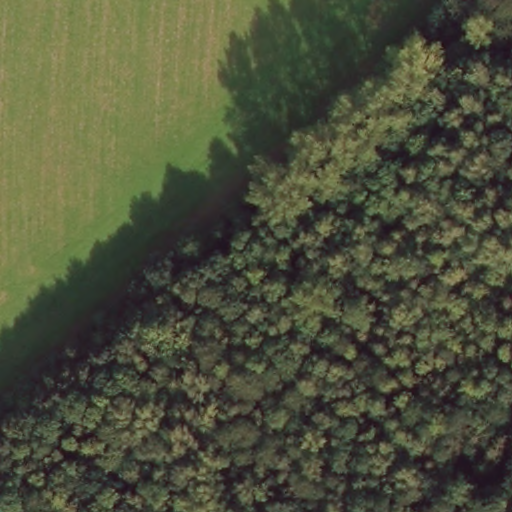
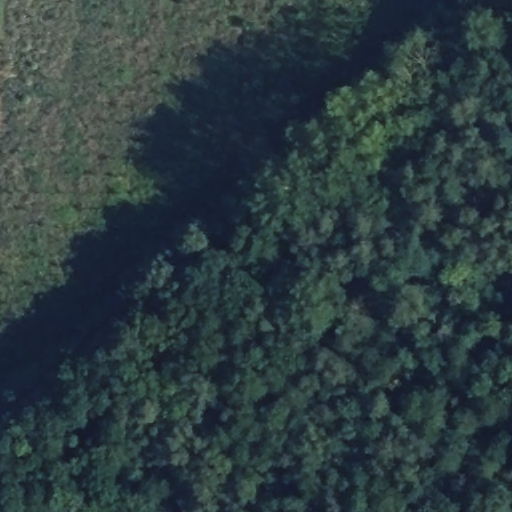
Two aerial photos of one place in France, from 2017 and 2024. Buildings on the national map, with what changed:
unchanged [(512,57),(512,66),(509,63),(512,57)]

